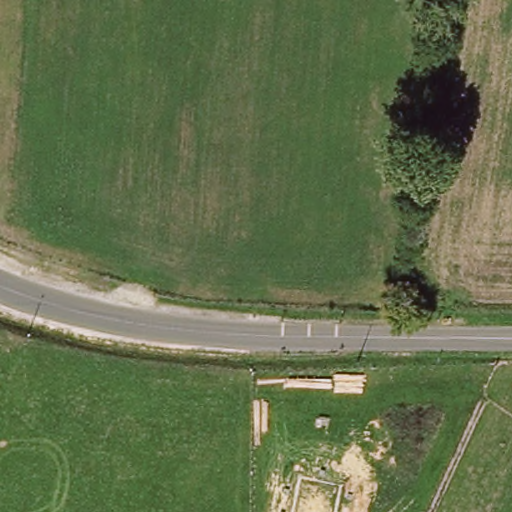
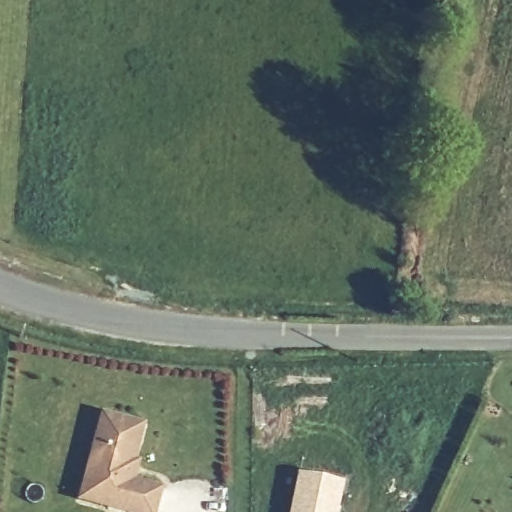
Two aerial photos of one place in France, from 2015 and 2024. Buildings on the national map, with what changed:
new [(136,460),(140,461),(135,481),(164,488),(157,512),(120,512),(78,500),(100,412),(146,425),(136,460)]
new [(341,485),(335,512),(293,512),(300,476),(341,485)]

